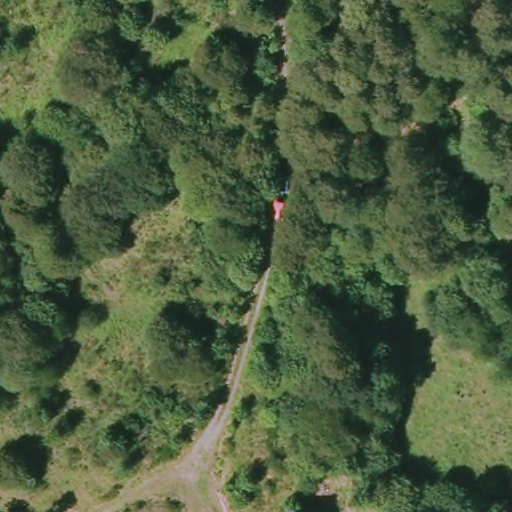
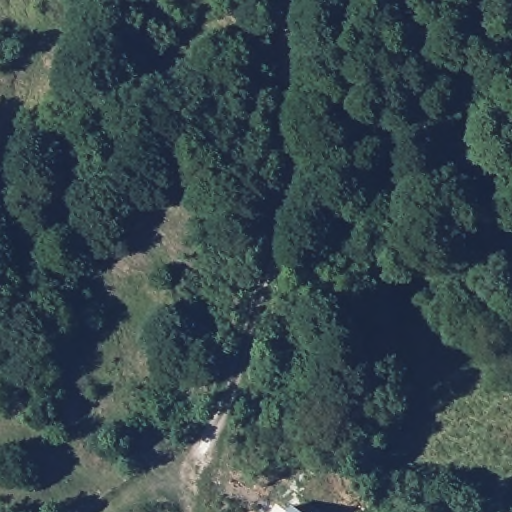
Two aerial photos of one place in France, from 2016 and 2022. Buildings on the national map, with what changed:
unchanged [(307,509),(310,512),(305,512),(307,509)]
unchanged [(287,511),(288,512),(287,512),(287,511)]

